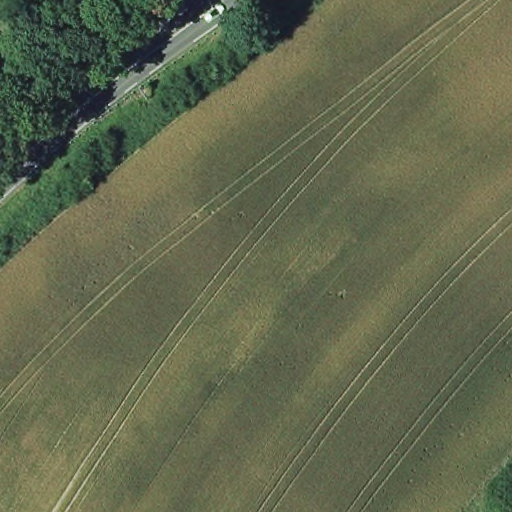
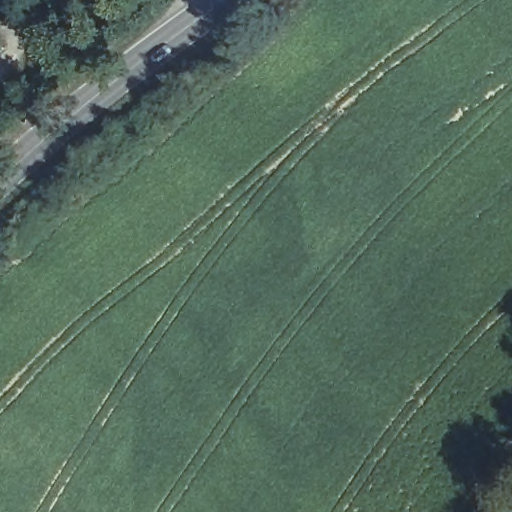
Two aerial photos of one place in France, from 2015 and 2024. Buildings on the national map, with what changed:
unchanged [(0,48),(0,46),(1,47),(0,48)]

